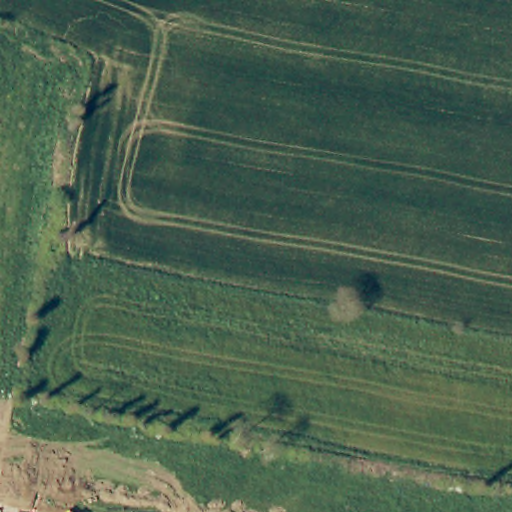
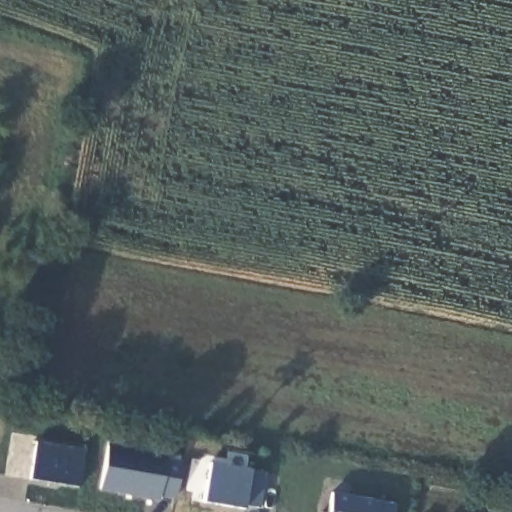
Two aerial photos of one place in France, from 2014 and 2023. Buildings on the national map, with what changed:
new [(79,485),(29,478),(33,441),(82,449),(79,485)]
new [(166,453),(166,457),(181,460),(176,495),(160,492),(160,496),(100,487),(107,443),(166,453)]
new [(209,460),(266,470),(260,505),(245,502),(244,507),(202,500),(209,460)]
new [(331,490),(396,501),(394,512),(328,512),(331,490)]
new [(322,511),(328,512),(322,512),(322,511)]

